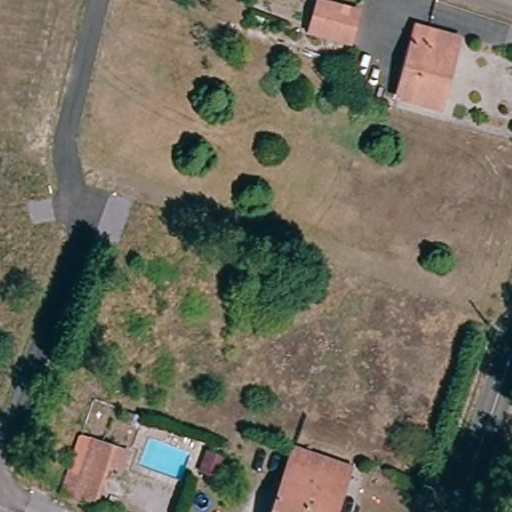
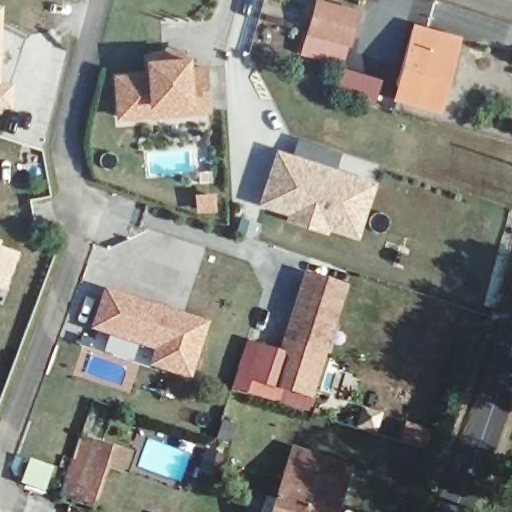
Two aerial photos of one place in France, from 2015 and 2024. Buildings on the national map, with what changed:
new [(0,5),(3,5),(1,81),(13,82),(13,108),(0,108),(0,5)]
unchanged [(353,16),(344,48),(304,37),(313,6),(353,16)]
unchanged [(458,44),(439,114),(398,103),(415,34),(458,44)]
new [(210,112),(119,119),(115,74),(148,71),(146,59),(192,56),(193,65),(208,64),(210,112)]
new [(288,215),(259,205),(277,148),(379,181),(360,238),(331,230),(329,236),(285,221),(288,215)]
new [(1,284),(0,283),(0,246),(14,251),(1,284)]
new [(351,285),(327,355),(284,341),(305,270),(351,285)]
new [(210,322),(193,380),(149,367),(155,350),(91,330),(104,288),(210,322)]
new [(279,403),(247,394),(251,380),(247,378),(259,344),(296,355),(283,391),(279,403)]
unchanged [(121,466),(107,462),(93,503),(74,496),(86,456),(72,451),(79,433),(127,449),(121,466)]
unchanged [(348,470),(334,512),(273,512),(293,451),(348,470)]

